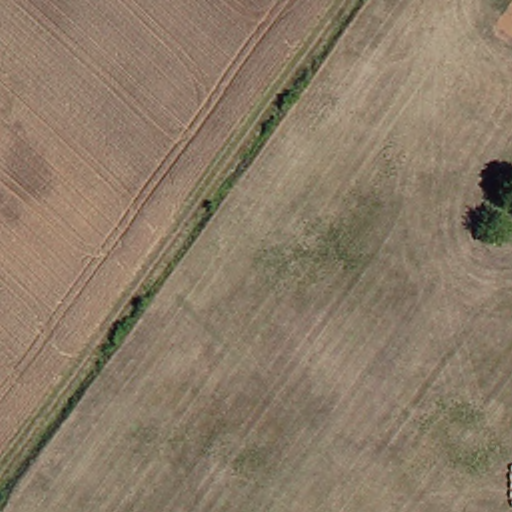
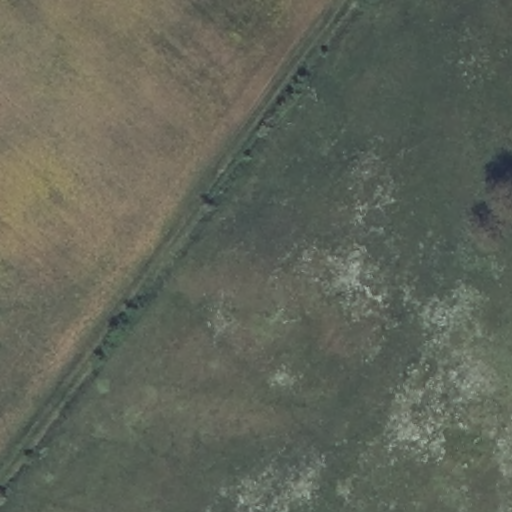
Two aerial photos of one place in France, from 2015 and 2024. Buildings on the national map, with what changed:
[]

